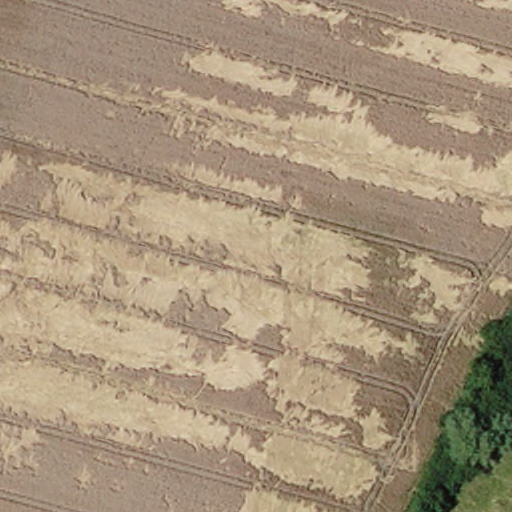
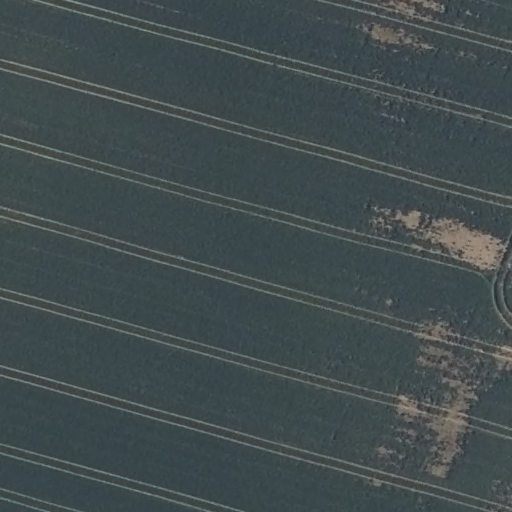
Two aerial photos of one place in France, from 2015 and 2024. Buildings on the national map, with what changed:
[]

